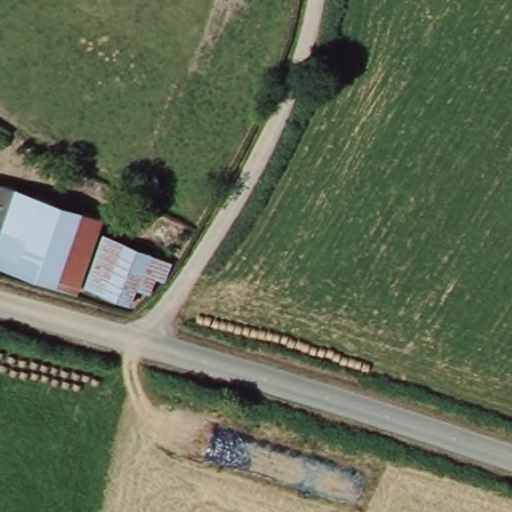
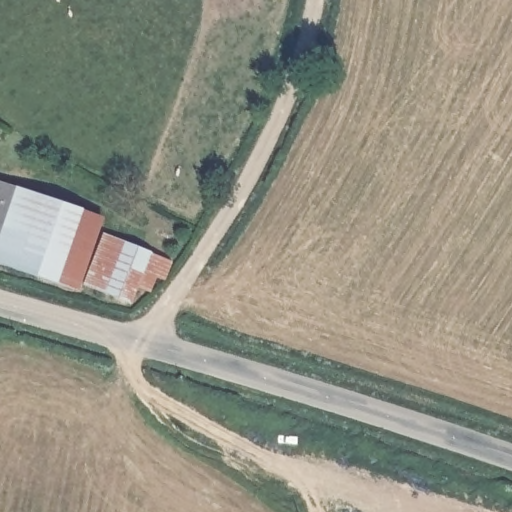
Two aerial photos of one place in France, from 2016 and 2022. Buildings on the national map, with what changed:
unchanged [(0,234),(0,199),(9,201),(0,234)]
unchanged [(98,224),(79,295),(0,275),(0,234),(9,201),(98,224)]
unchanged [(135,295),(128,310),(83,294),(98,248),(167,270),(162,287),(153,284),(149,299),(135,295)]

